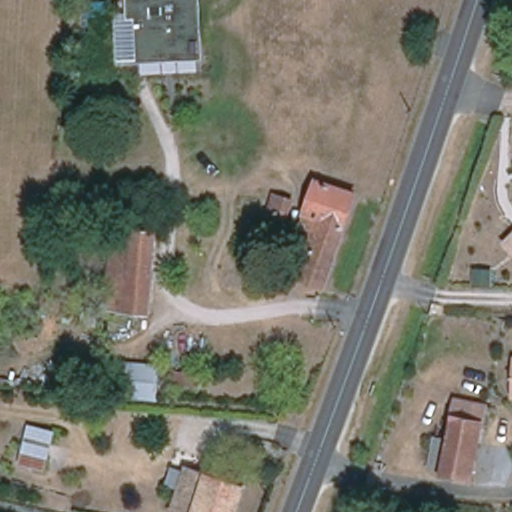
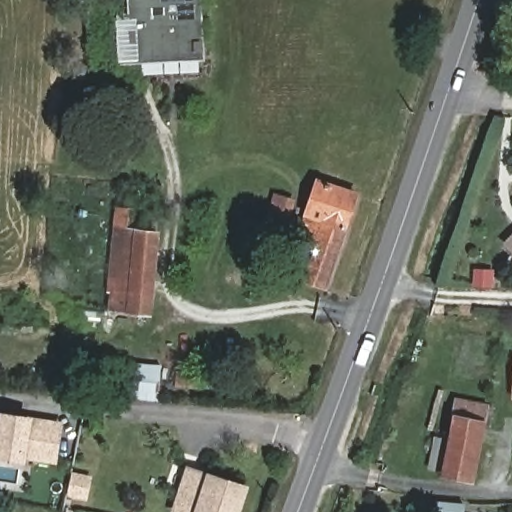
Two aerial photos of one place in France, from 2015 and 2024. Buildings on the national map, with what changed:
unchanged [(121,64),(119,24),(131,23),(130,0),(199,0),(202,60),(121,64)]
unchanged [(108,36),(106,65),(92,65),(92,35),(108,36)]
unchanged [(325,289),(292,277),(310,225),(304,223),(318,182),(356,195),(325,289)]
unchanged [(281,240),(263,235),(275,197),(293,202),(281,240)]
unchanged [(149,315),(112,310),(113,291),(110,291),(116,230),(157,234),(149,315)]
unchanged [(512,237),(512,247),(507,242),(512,237)]
demolished [(269,285),(259,285),(261,267),(271,268),(269,285)]
unchanged [(157,400),(102,395),(105,365),(159,368),(157,400)]
unchanged [(177,385),(178,374),(200,376),(199,388),(177,385)]
unchanged [(471,482),(443,476),(444,471),(430,468),(437,436),(451,438),(458,401),(486,407),(471,482)]
new [(26,460),(26,465),(0,461),(0,412),(34,416),(63,421),(56,463),(26,460)]
demolished [(46,471),(21,465),(30,427),(55,434),(46,471)]
unchanged [(234,512),(174,512),(188,470),(242,487),(234,512)]

